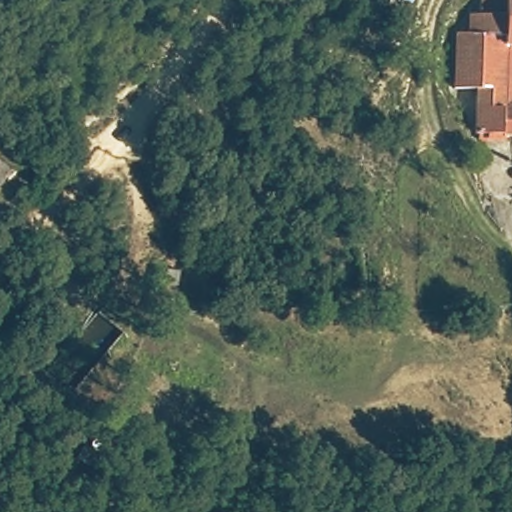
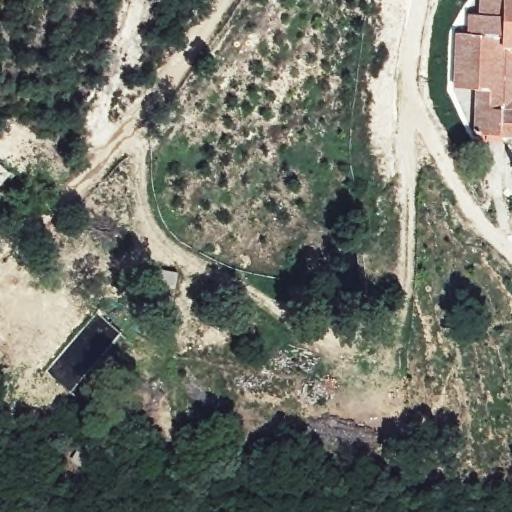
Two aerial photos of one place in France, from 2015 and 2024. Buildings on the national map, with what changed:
unchanged [(479,92),(459,89),(461,29),(460,17),(487,17),(487,2),(487,0),(512,0),(512,141),(476,140),(479,92)]
unchanged [(10,176),(0,187),(0,166),(10,176)]
unchanged [(165,288),(163,304),(147,302),(150,269),(178,272),(177,289),(165,288)]
unchanged [(72,461),(80,445),(87,450),(91,443),(101,448),(88,470),(72,461)]

